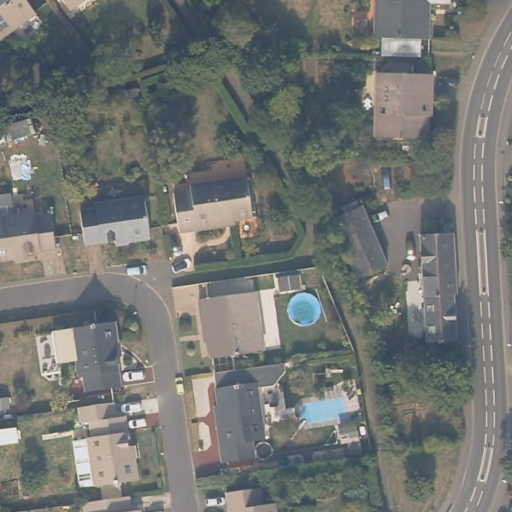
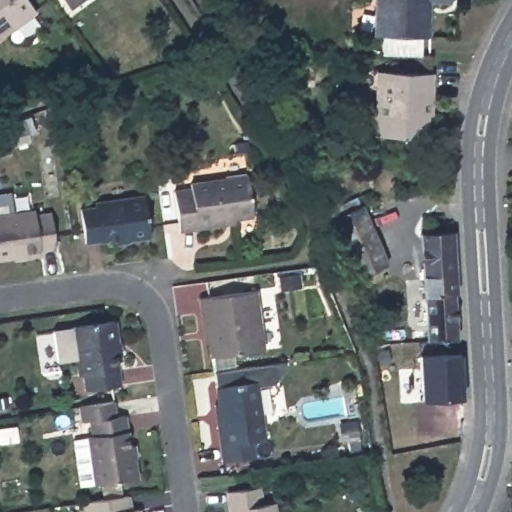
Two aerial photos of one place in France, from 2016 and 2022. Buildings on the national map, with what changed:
unchanged [(40,18),(0,47),(0,0),(27,0),(40,18)]
unchanged [(66,5),(63,0),(86,0),(71,12),(66,5)]
unchanged [(371,4),(371,0),(446,0),(446,1),(426,1),(425,36),(377,35),(370,35),(371,4)]
unchanged [(428,111),(427,136),(377,135),(379,70),(390,70),(390,60),(409,61),(409,70),(433,71),(433,97),(432,111),(428,111)]
unchanged [(218,228),(182,233),(176,194),(194,192),(193,187),(249,180),(255,218),(238,220),(238,225),(218,228)]
unchanged [(149,242),(114,247),(114,242),(84,247),(79,214),(94,212),(94,208),(142,201),(149,242)]
unchanged [(390,263),(359,278),(332,219),(363,204),(390,263)]
unchanged [(25,251),(25,256),(0,260),(0,217),(32,212),(33,216),(49,213),(55,246),(25,251)]
unchanged [(427,338),(421,231),(446,229),(453,228),(458,291),(454,291),(456,337),(451,337),(427,338)]
unchanged [(301,276),(302,289),(283,292),(281,278),(301,276)]
unchanged [(258,326),(256,327),(259,352),(209,360),(206,334),(202,335),(197,301),(253,292),(258,326)]
unchanged [(120,353),(117,353),(121,384),(87,389),(85,374),(80,374),(73,327),(116,321),(120,353)]
new [(462,398),(422,400),(422,355),(462,353),(462,398)]
unchanged [(264,380),(272,435),(259,436),(261,455),(230,460),(225,423),(222,403),(225,402),(223,386),(264,380)]
unchanged [(96,423),(87,425),(85,410),(119,405),(121,420),(130,418),(135,449),(139,448),(144,482),(101,488),(101,486),(86,488),(80,443),(94,441),(94,440),(99,438),(96,423)]
unchanged [(260,489),(263,507),(277,505),(278,512),(232,512),(229,493),(260,489)]
unchanged [(139,506),(140,512),(86,512),(84,500),(128,493),(130,507),(139,506)]

